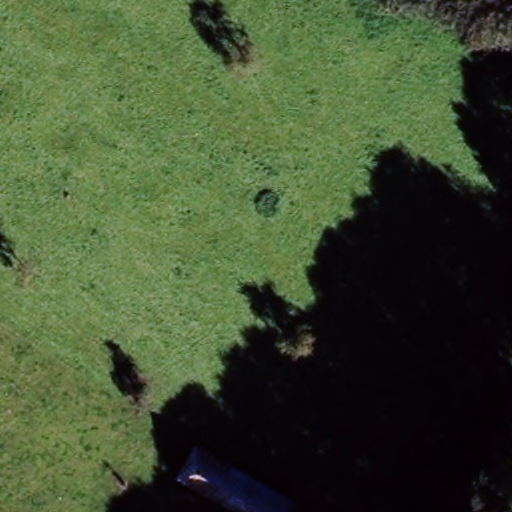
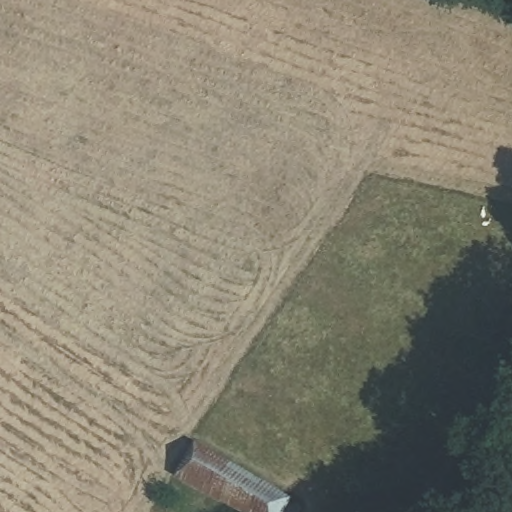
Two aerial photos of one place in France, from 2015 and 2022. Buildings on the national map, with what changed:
unchanged [(235,512),(174,478),(192,447),(289,500),(283,512),(235,512)]

